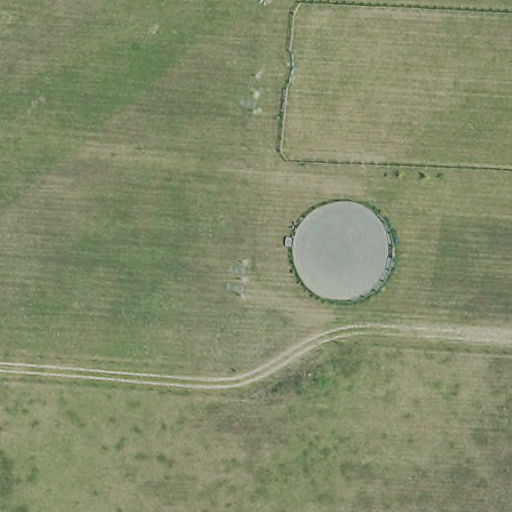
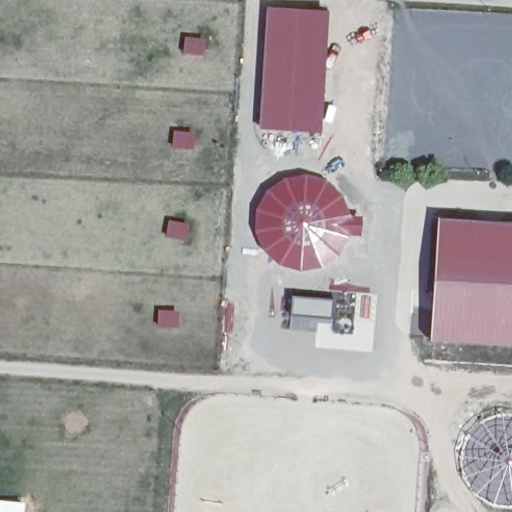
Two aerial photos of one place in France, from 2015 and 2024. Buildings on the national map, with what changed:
new [(266,5),(328,10),(322,132),(258,128),(266,5)]
new [(256,213),(259,204),(263,196),(270,188),(277,182),(286,177),(295,175),(305,174),(315,175),(323,177),(332,182),(340,188),(345,196),(350,204),(353,213),(354,223),(353,233),(350,242),(345,251),(340,258),(332,264),(323,269),(315,271),(305,272),(295,271),(286,269),(277,264),(270,258),(263,251),(259,242),(256,233),(255,223),(256,213)]
new [(512,222),(512,349),(430,345),(435,218),(512,222)]
new [(290,293),(333,296),(331,320),(317,319),(315,331),(287,328),(290,293)]
new [(0,512),(0,501),(25,503),(24,512),(0,512)]

